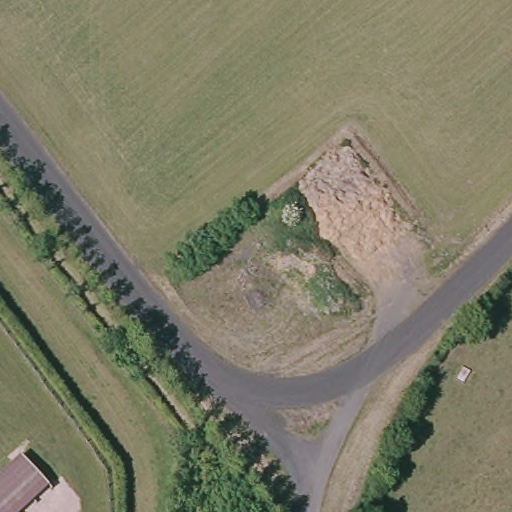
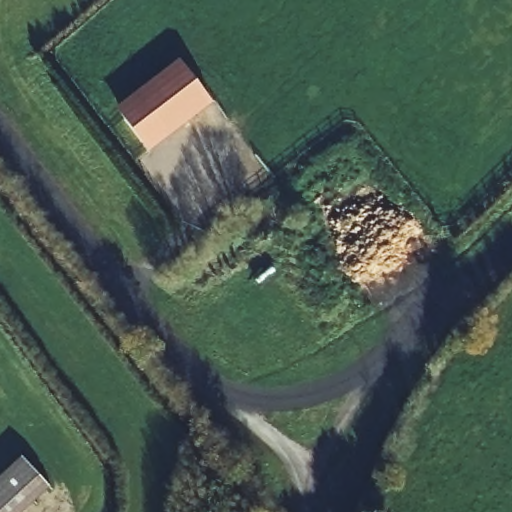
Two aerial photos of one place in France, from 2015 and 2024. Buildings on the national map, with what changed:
new [(147,151),(116,107),(179,59),(212,102),(147,151)]
unchanged [(48,498),(33,512),(0,512),(0,479),(19,460),(48,498)]

